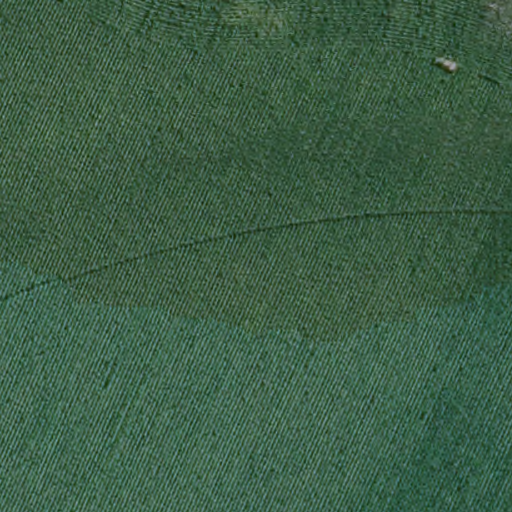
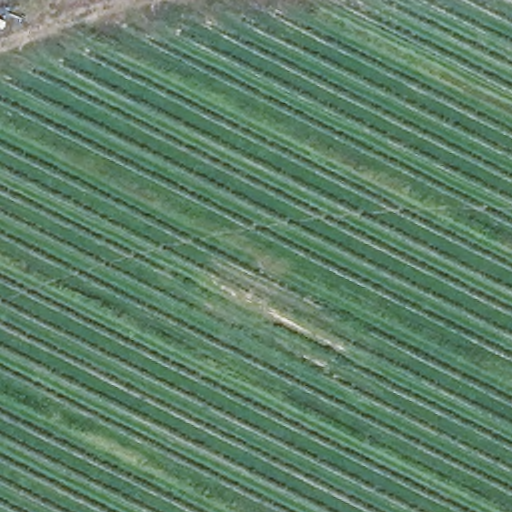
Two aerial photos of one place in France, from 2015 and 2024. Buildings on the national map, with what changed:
[]

